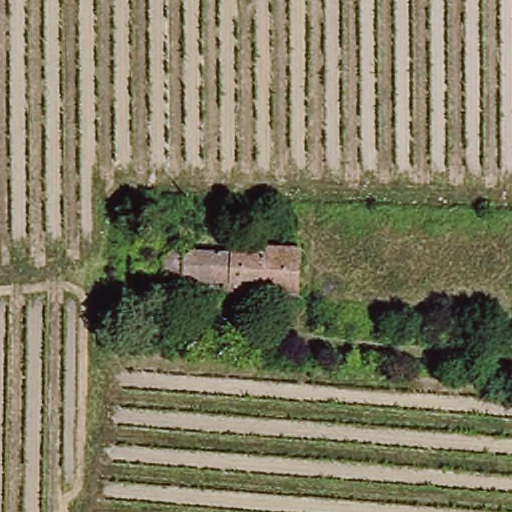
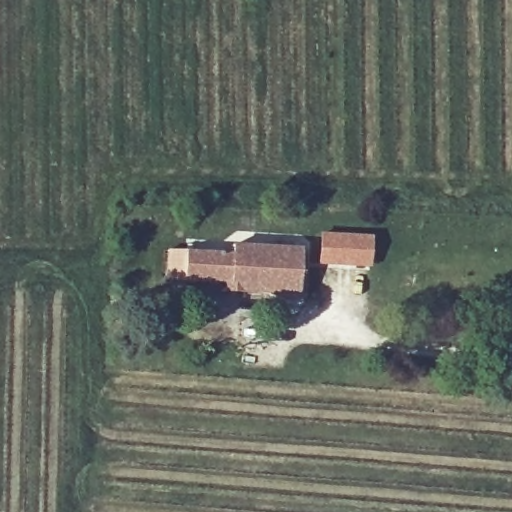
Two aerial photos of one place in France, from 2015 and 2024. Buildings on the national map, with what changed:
new [(318,266),(319,234),(373,237),(371,268),(318,266)]
unchanged [(301,293),(223,294),(222,283),(160,280),(161,255),(230,257),(231,242),(302,249),(301,293)]

